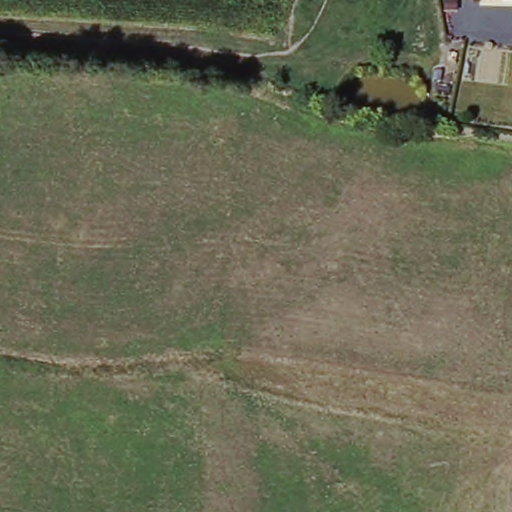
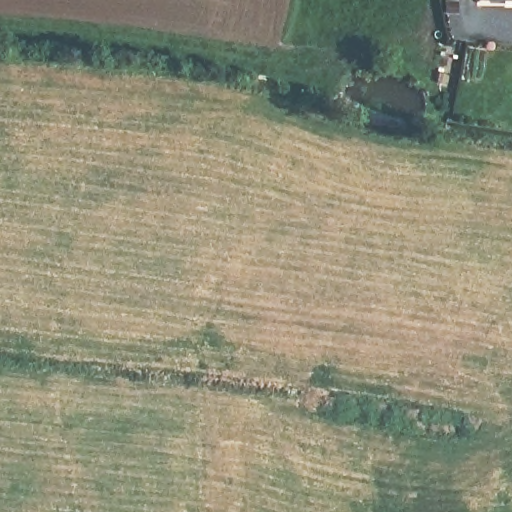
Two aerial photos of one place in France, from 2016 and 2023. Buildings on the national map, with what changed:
unchanged [(512,1),(463,0),(512,0),(512,1)]

